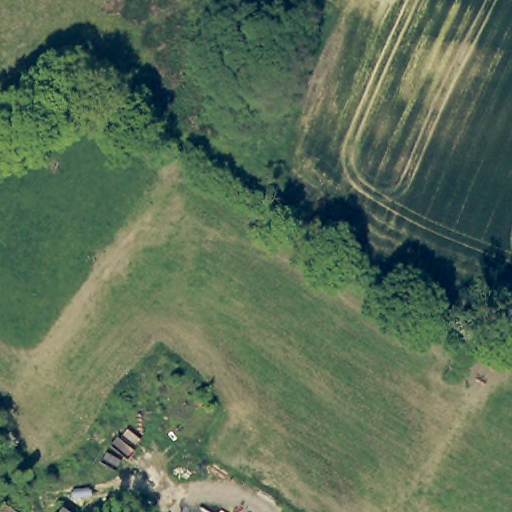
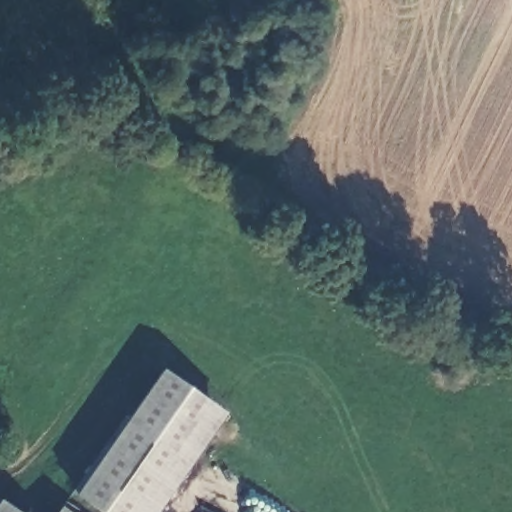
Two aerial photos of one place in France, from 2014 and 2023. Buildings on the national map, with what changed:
new [(227,411),(159,512),(101,512),(75,493),(162,367),(227,411)]
new [(21,512),(0,512),(0,498),(21,512)]
unchanged [(65,512),(53,512),(56,506),(65,512)]

